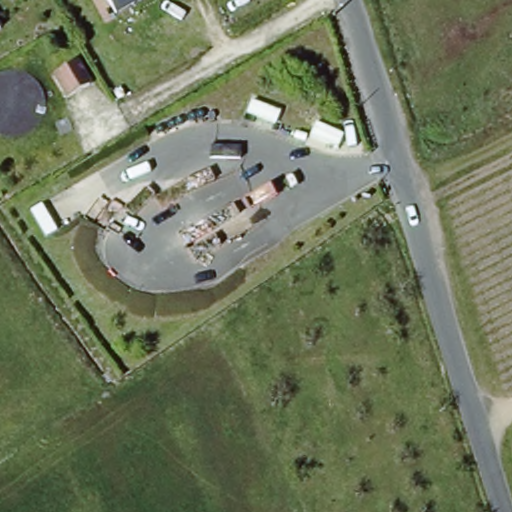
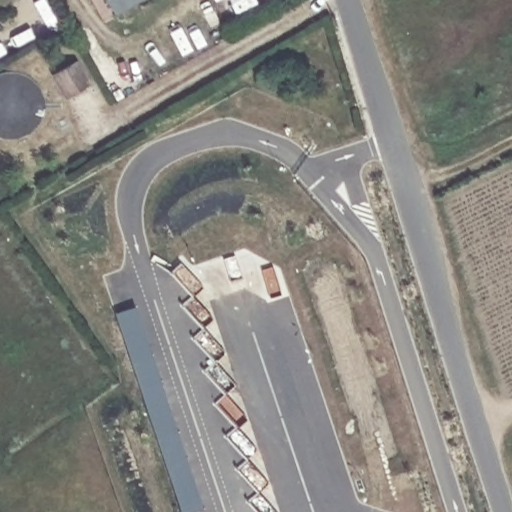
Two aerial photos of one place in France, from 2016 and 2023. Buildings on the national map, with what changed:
unchanged [(138,0),(115,13),(108,0),(138,0)]
unchanged [(13,61),(30,62),(45,71),(52,89),(51,104),(47,111),(40,119),(25,126),(7,125),(0,120),(0,67),(13,61)]
unchanged [(65,99),(54,77),(73,66),(85,88),(65,99)]
unchanged [(331,127),(322,136),(310,124),(320,115),(331,127)]

